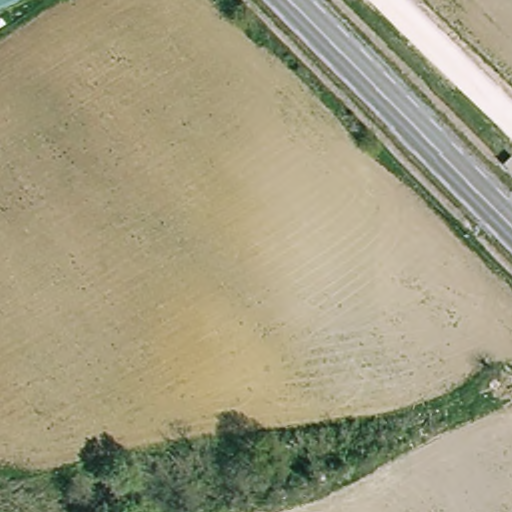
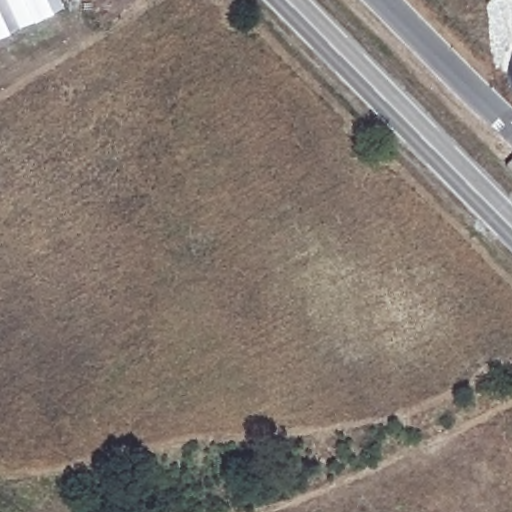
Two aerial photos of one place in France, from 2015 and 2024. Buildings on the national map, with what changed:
unchanged [(0,7),(0,0),(15,0),(0,7)]
new [(60,6),(0,34),(0,7),(15,0),(57,0),(60,6)]
unchanged [(490,153),(497,145),(511,159),(503,166),(490,153)]

